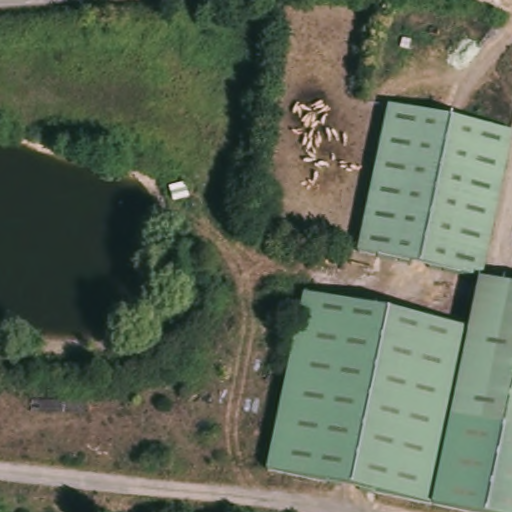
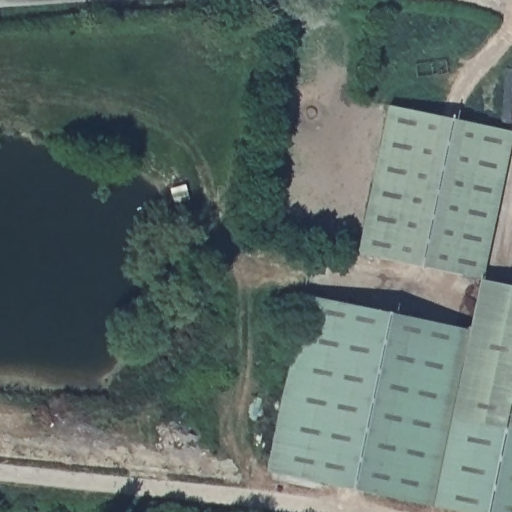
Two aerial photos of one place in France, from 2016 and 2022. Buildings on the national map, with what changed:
unchanged [(304,296),(467,326),(476,278),(358,251),(387,106),(512,130),(512,133),(484,278),(512,284),(512,512),(464,512),(269,472),(304,296)]

